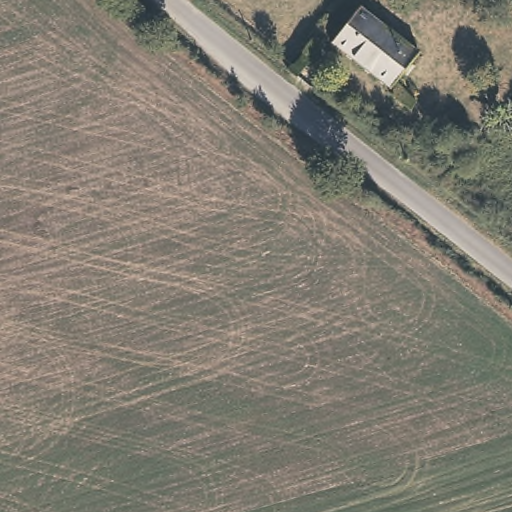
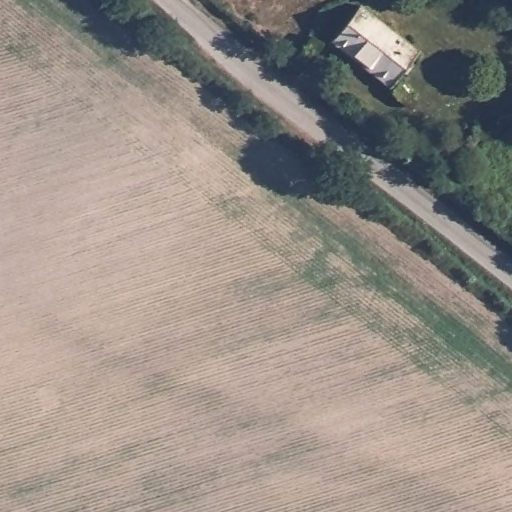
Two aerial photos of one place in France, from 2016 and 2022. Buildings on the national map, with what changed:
unchanged [(421,53),(393,89),(332,41),(360,7),(421,53)]

